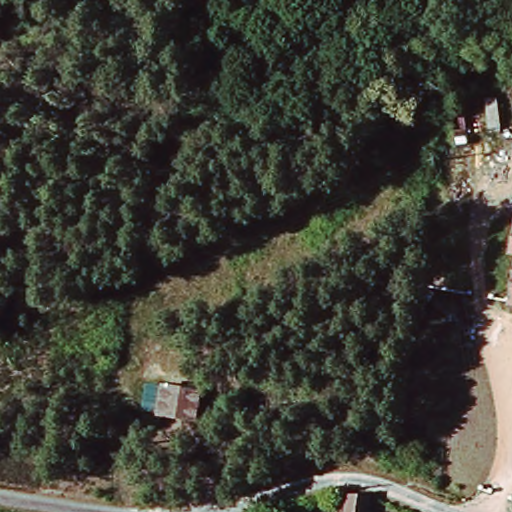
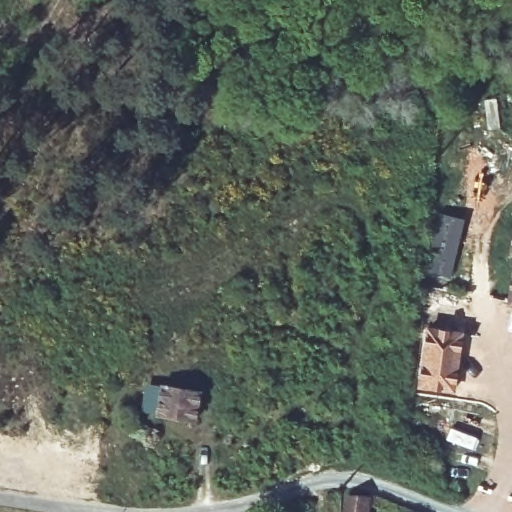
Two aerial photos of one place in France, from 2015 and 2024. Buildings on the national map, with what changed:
new [(463,219),(450,277),(425,272),(436,215),(463,219)]
unchanged [(512,306),(510,305),(512,297),(512,306)]
new [(423,327),(462,333),(454,394),(416,390),(423,327)]
unchanged [(190,426),(151,419),(137,417),(142,388),(156,390),(195,396),(190,426)]
unchanged [(354,487),(372,492),(370,512),(344,512),(344,507),(354,487)]

